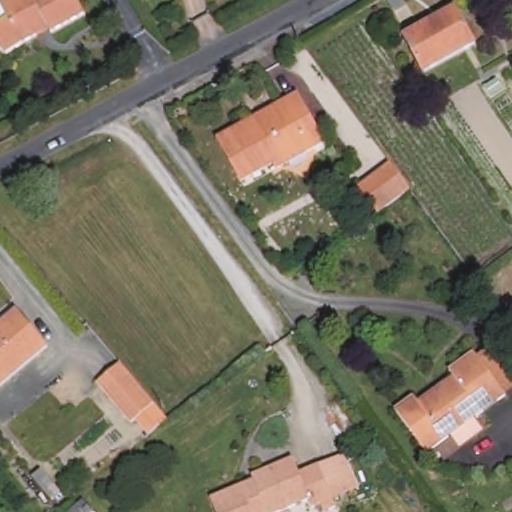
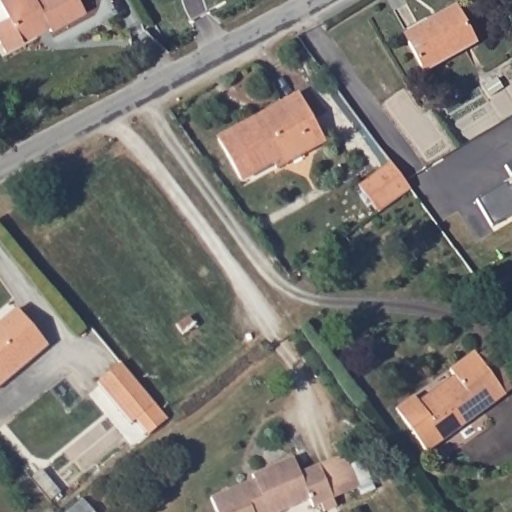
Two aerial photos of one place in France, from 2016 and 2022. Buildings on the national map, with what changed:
unchanged [(88,13),(52,32),(50,28),(9,51),(0,36),(0,20),(10,15),(2,0),(81,0),(88,13)]
unchanged [(455,9),(474,45),(423,73),(403,37),(455,9)]
unchanged [(235,131),(237,134),(261,120),(259,117),(297,97),(322,143),(278,168),(276,163),(242,182),(219,139),(235,131)]
new [(512,161),(512,176),(505,164),(512,161)]
unchanged [(358,188),(390,164),(408,188),(377,212),(358,188)]
new [(477,200),(512,179),(512,216),(492,226),(477,200)]
unchanged [(15,314),(46,350),(0,388),(0,327),(15,314)]
unchanged [(432,397),(436,402),(445,396),(440,391),(457,378),(452,371),(478,352),(482,358),(494,350),(512,376),(512,395),(510,396),(430,453),(400,411),(418,398),(422,404),(432,397)]
unchanged [(116,354),(150,397),(161,410),(142,427),(130,414),(126,417),(92,375),(116,354)]
unchanged [(255,470),(301,461),(303,478),(332,473),(339,512),(316,512),(315,507),(287,512),(215,512),(210,484),(256,476),(255,470)]

